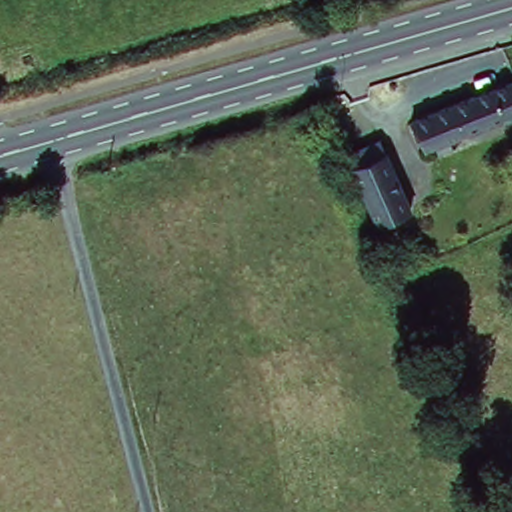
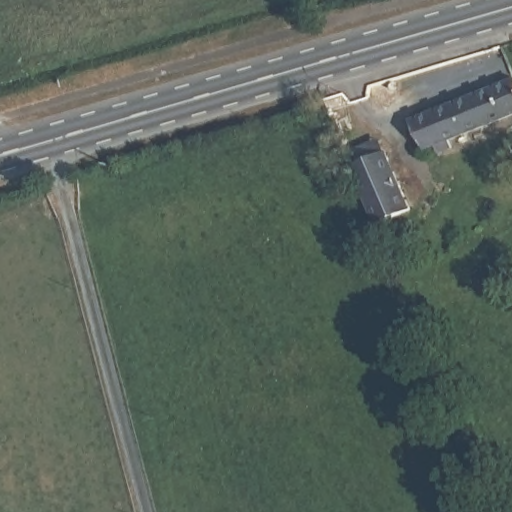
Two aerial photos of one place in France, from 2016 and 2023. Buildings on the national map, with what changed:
unchanged [(422,149),(411,119),(512,77),(512,111),(445,139),(448,145),(435,151),(432,144),(422,149)]
unchanged [(355,169),(387,154),(412,209),(380,224),(355,169)]

